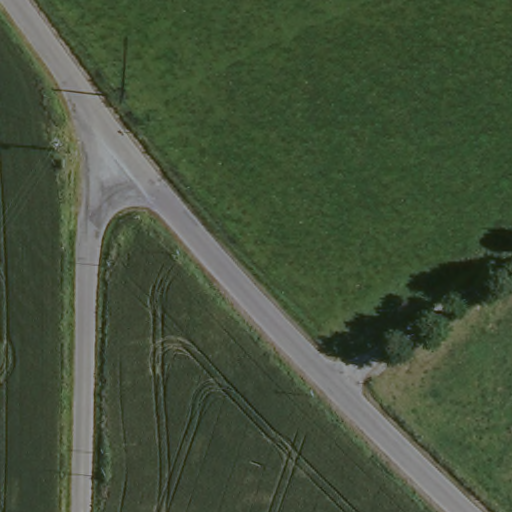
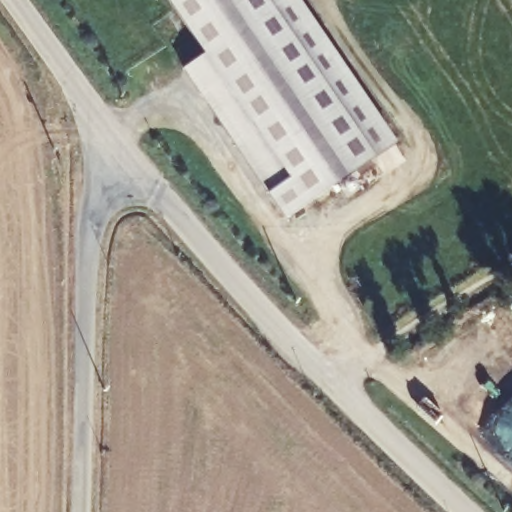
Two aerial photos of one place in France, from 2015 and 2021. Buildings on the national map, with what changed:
new [(183,71),(205,56),(168,0),(298,0),(396,145),(374,160),(285,221),(268,195),(183,71)]
unchanged [(62,153),(70,160),(63,168),(55,161),(62,153)]

